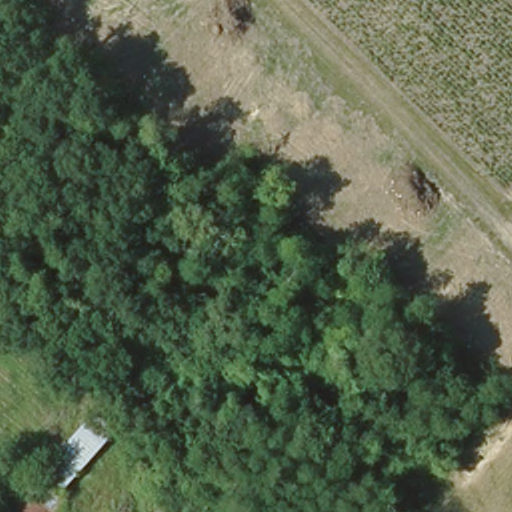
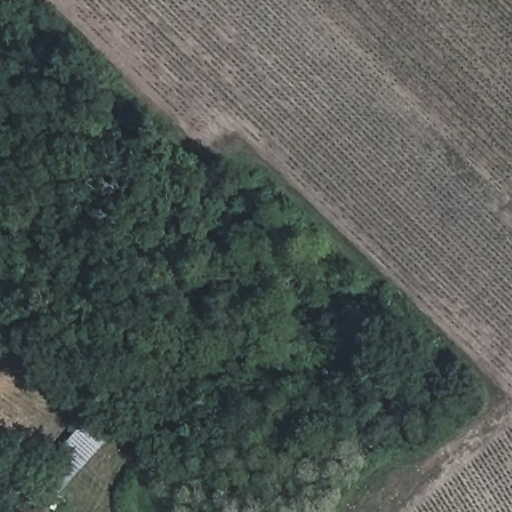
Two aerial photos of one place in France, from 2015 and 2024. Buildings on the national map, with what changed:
unchanged [(36,484),(90,422),(113,438),(61,495),(75,507),(71,512),(0,512),(0,511),(25,475),(36,484)]

